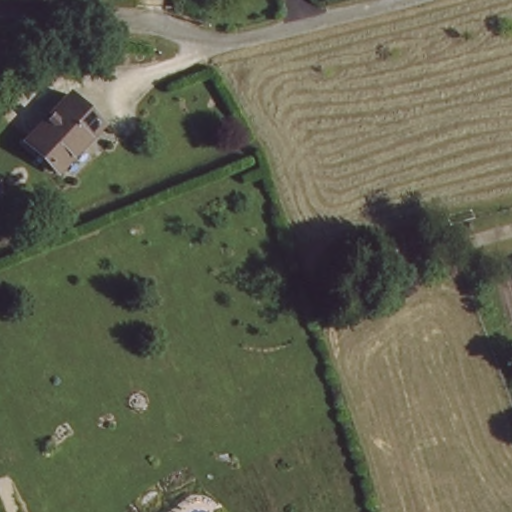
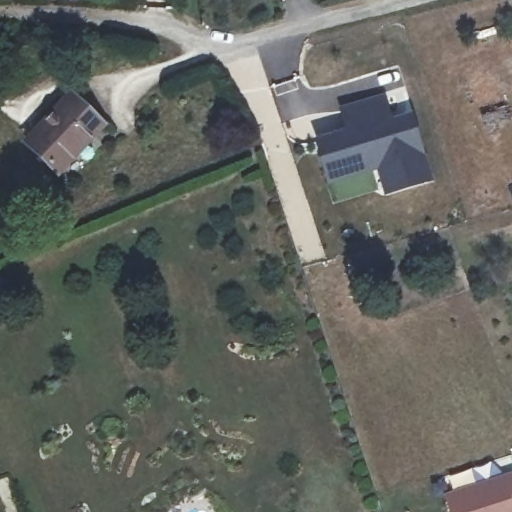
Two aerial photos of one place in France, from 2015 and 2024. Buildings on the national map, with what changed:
new [(383,194),(376,170),(328,186),(312,137),(344,129),(339,107),(383,94),(391,117),(413,112),(425,155),(433,180),(383,194)]
unchanged [(100,125),(57,172),(23,142),(68,95),(100,125)]
new [(443,493),(512,471),(512,512),(449,512),(443,493)]

